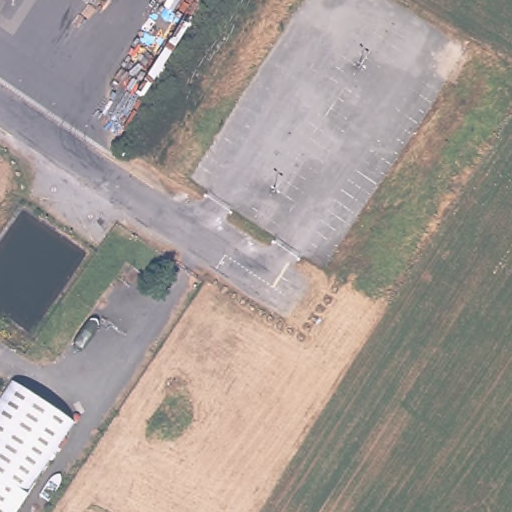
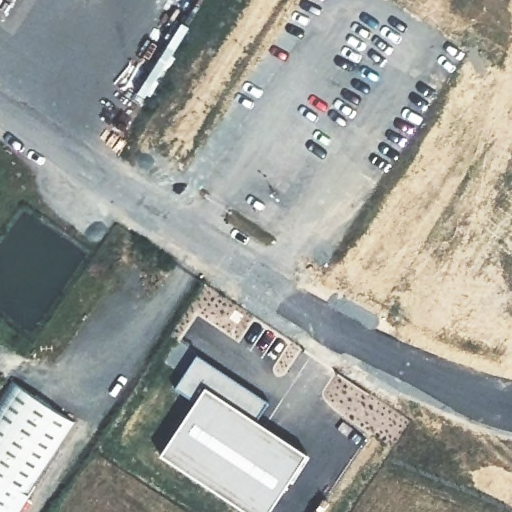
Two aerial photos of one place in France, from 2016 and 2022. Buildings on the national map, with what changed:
new [(250,512),(157,451),(192,399),(172,386),(196,353),(266,400),(255,418),(303,450),(263,512),(250,512)]
unchanged [(76,428),(20,512),(0,512),(0,407),(14,386),(76,428)]

